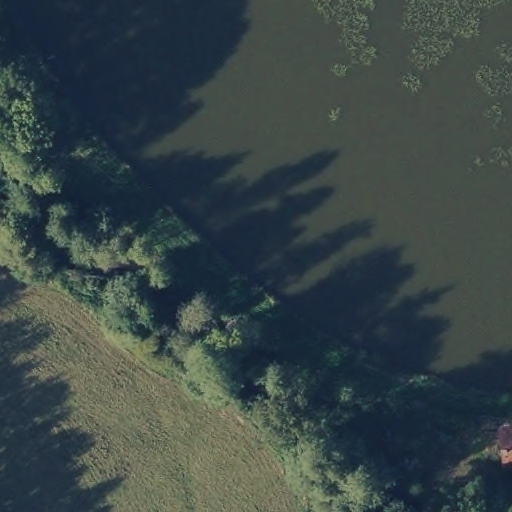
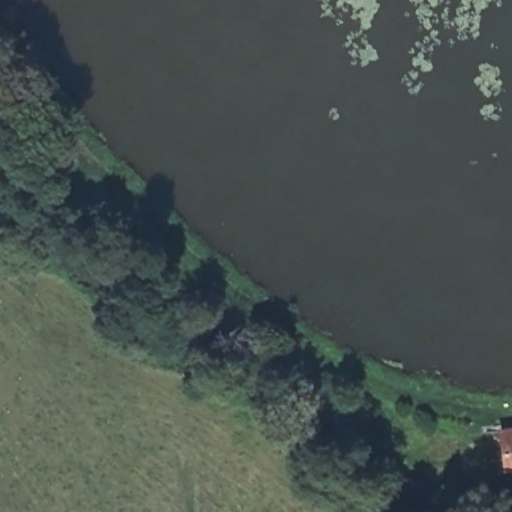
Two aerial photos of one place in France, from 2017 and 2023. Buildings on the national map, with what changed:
unchanged [(499,474),(494,426),(512,423),(512,472),(499,474)]

